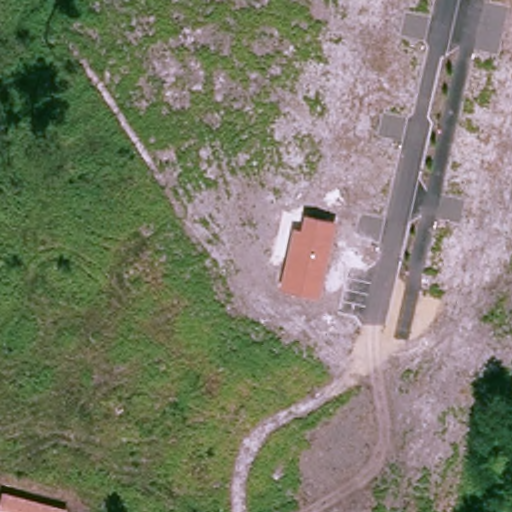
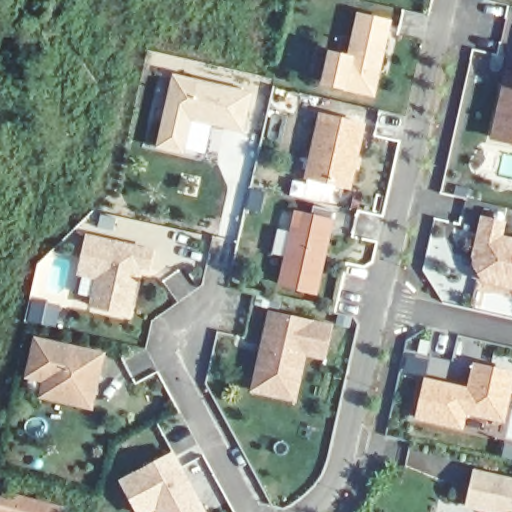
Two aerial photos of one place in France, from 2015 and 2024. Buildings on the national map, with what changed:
new [(332,52),(351,57),(361,15),(390,21),(374,92),(326,81),(332,52)]
new [(512,85),(507,84),(509,72),(512,73),(512,85)]
new [(157,147),(172,74),(252,92),(242,131),(192,120),(184,154),(157,147)]
new [(507,84),(512,85),(512,141),(495,137),(507,84)]
new [(305,178),(319,113),(365,121),(350,188),(305,178)]
unchanged [(317,295),(280,286),(293,225),(300,227),(305,214),(334,220),(317,295)]
new [(501,237),(512,239),(512,284),(486,278),(478,266),(475,261),(481,234),(485,217),(505,222),(501,237)]
new [(87,234),(154,248),(149,269),(140,267),(129,315),(91,305),(96,278),(77,273),(87,234)]
new [(272,312),(332,326),(325,357),(306,352),(299,385),(296,399),(254,390),(257,375),(272,312)]
new [(27,375),(35,338),(102,353),(90,405),(56,397),(41,394),(45,378),(27,375)]
new [(462,430),(415,420),(424,377),(468,386),(473,362),(512,370),(512,387),(504,422),(465,413),(462,430)]
new [(152,512),(137,512),(120,480),(174,451),(206,512),(157,512),(156,510),(152,512)]
new [(465,505),(469,487),(473,470),(512,479),(512,512),(500,512),(485,509),(465,505)]
unchanged [(54,510),(57,511),(57,512),(0,512),(0,493),(54,510)]

